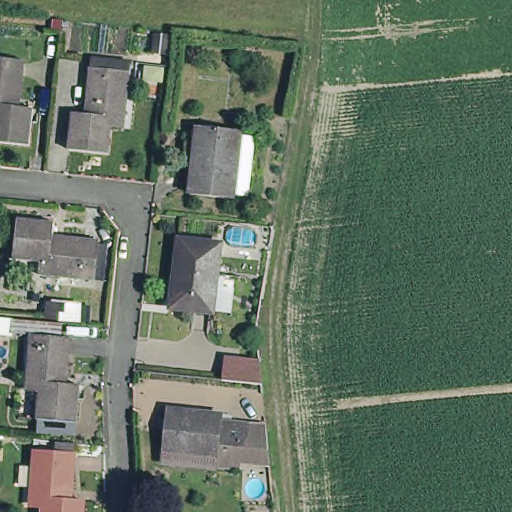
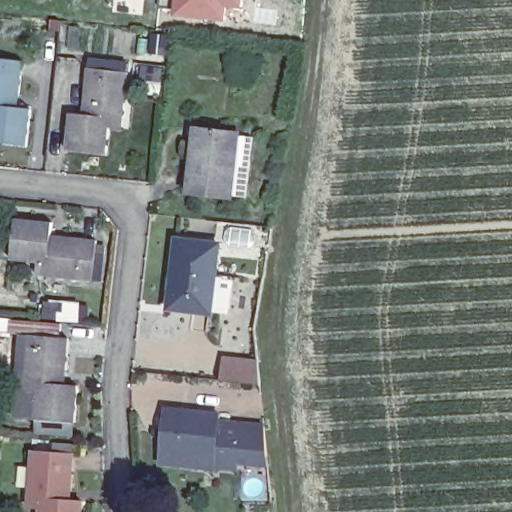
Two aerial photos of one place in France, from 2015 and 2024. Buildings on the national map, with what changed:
new [(162,6),(162,0),(243,0),(242,7),(228,5),(225,19),(179,14),(180,8),(162,6)]
unchanged [(30,50),(25,83),(21,83),(19,96),(37,98),(34,135),(0,131),(0,46),(30,50)]
unchanged [(115,116),(112,142),(72,138),(76,102),(94,104),(95,91),(88,91),(92,55),(132,60),(128,108),(127,117),(115,116)]
unchanged [(244,191),(229,189),(229,192),(187,187),(195,122),(237,127),(237,130),(251,131),(244,191)]
unchanged [(42,257),(15,254),(20,212),(57,217),(55,230),(69,231),(100,235),(96,276),(52,271),(40,269),(42,257)]
unchanged [(222,303),(213,303),(213,304),(170,302),(172,290),(165,290),(167,269),(174,269),(177,234),(220,237),(217,269),(225,270),(222,303)]
unchanged [(32,332),(10,330),(12,316),(63,321),(62,335),(70,336),(68,369),(67,382),(82,383),(79,419),(40,416),(42,389),(27,388),(28,379),(32,332)]
unchanged [(262,382),(223,378),(225,355),(260,359),(262,382)]
unchanged [(241,461),(221,459),(219,466),(165,460),(170,417),(224,424),(224,429),(245,431),(265,434),(265,464),(241,461)]
unchanged [(35,445),(75,448),(72,482),(68,482),(67,495),(85,497),(84,512),(43,512),(44,501),(30,500),(32,492),(35,445)]

